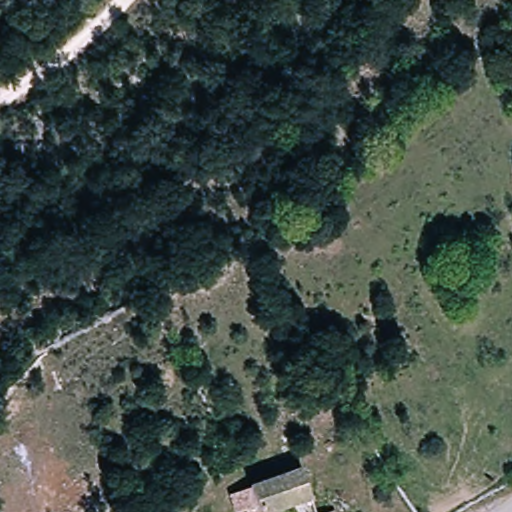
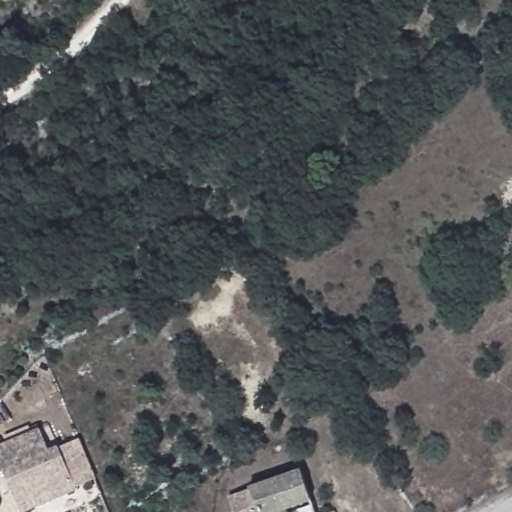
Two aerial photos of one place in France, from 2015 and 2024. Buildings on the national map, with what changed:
new [(59,447),(80,439),(96,478),(75,488),(77,491),(28,512),(21,512),(3,472),(0,473),(0,438),(3,445),(40,429),(49,450),(59,447)]
unchanged [(242,502),(251,498),(244,482),(297,465),(313,507),(305,512),(296,512),(293,501),(264,512),(245,512),(242,502)]

